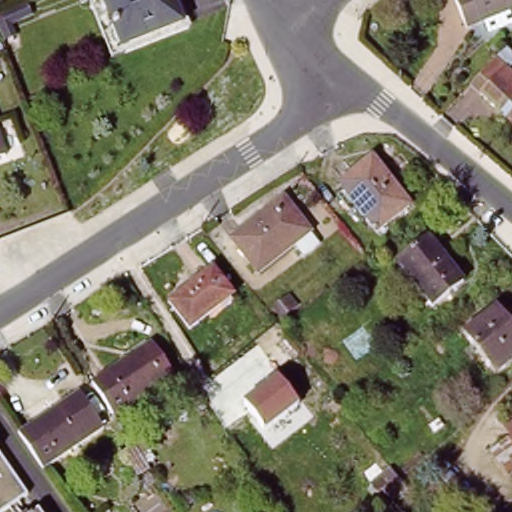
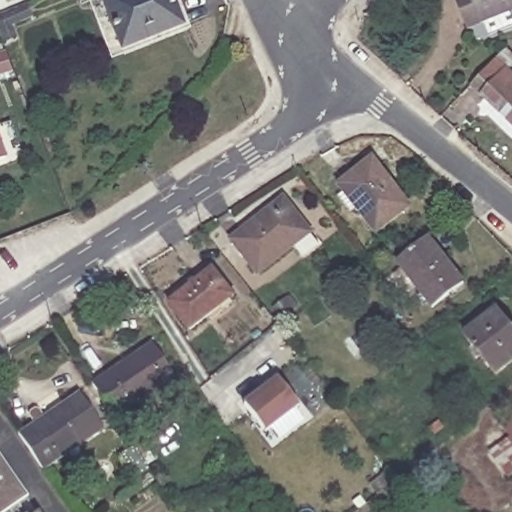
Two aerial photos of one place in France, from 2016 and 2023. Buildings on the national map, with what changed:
unchanged [(188,26),(127,50),(107,0),(178,0),(188,26)]
unchanged [(509,16),(508,20),(487,29),(483,18),(462,25),(452,0),(512,0),(512,15),(509,16)]
unchanged [(475,90),(470,86),(493,60),(498,65),(512,77),(512,123),(475,90)]
unchanged [(0,165),(0,140),(7,162),(0,165)]
unchanged [(408,212),(376,237),(340,191),(373,166),(408,212)]
unchanged [(310,234),(257,275),(230,241),(284,200),(310,234)]
unchanged [(463,284),(431,308),(397,263),(428,239),(463,284)]
unchanged [(237,301),(192,335),(172,308),(217,275),(237,301)]
unchanged [(512,335),(512,367),(495,380),(463,340),(496,314),(512,335)]
unchanged [(150,346),(173,379),(118,418),(96,385),(150,346)]
unchanged [(300,406),(265,433),(242,403),(276,376),(300,406)]
unchanged [(83,391),(107,430),(48,472),(22,434),(83,391)]
unchanged [(495,427),(512,414),(512,450),(495,427)]
unchanged [(2,512),(0,512),(0,459),(25,497),(2,512)]
unchanged [(274,512),(260,512),(271,507),(274,512)]

